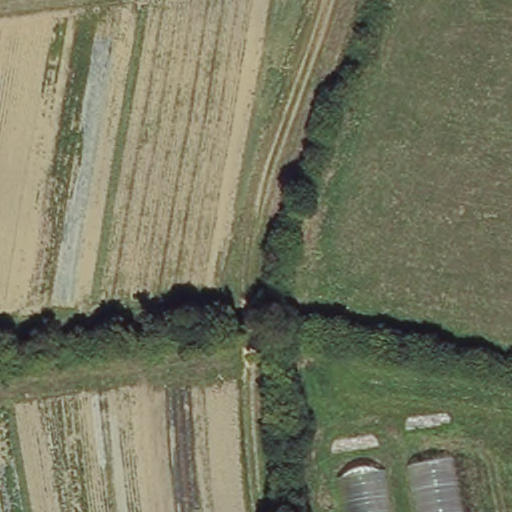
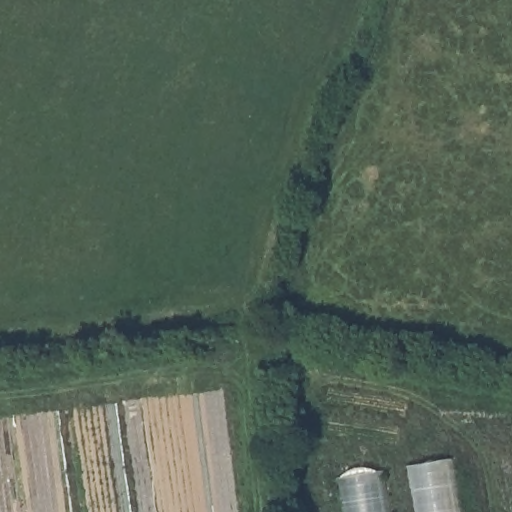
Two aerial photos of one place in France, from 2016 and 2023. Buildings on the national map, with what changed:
unchanged [(453,457),(462,512),(421,512),(412,465),(453,457)]
unchanged [(381,460),(390,512),(344,512),(336,467),(381,460)]

